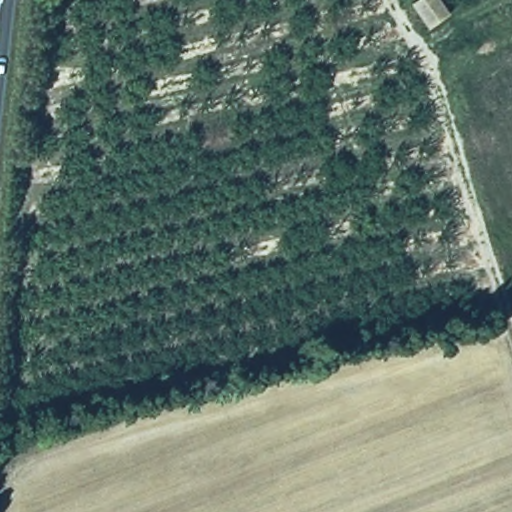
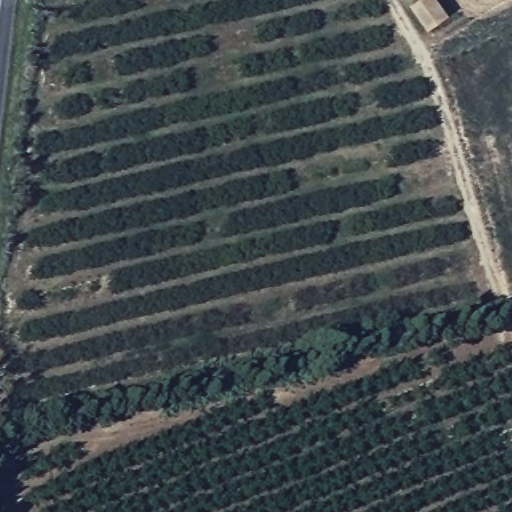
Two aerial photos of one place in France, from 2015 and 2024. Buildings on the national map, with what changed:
unchanged [(427,0),(438,0),(446,14),(426,25),(416,6),(427,0)]

